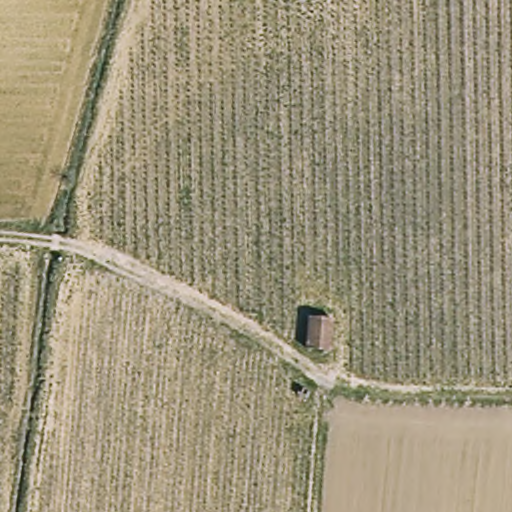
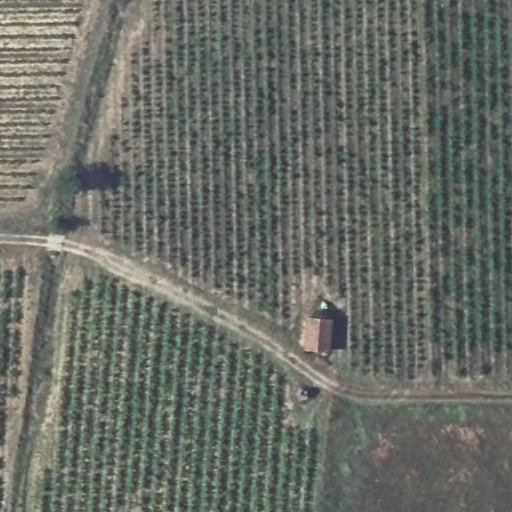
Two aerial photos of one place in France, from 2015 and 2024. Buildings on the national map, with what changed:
unchanged [(332,321),(328,350),(310,347),(313,318),(332,321)]

